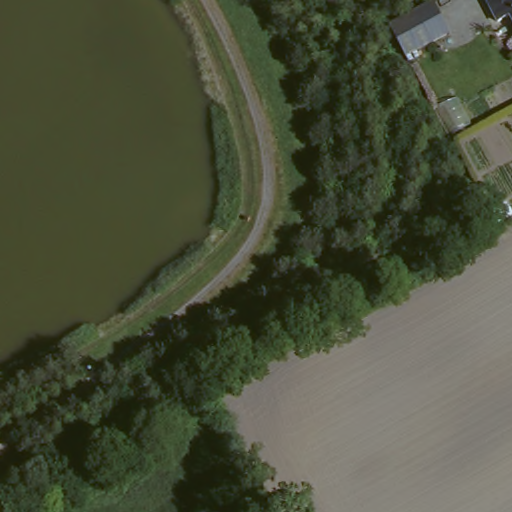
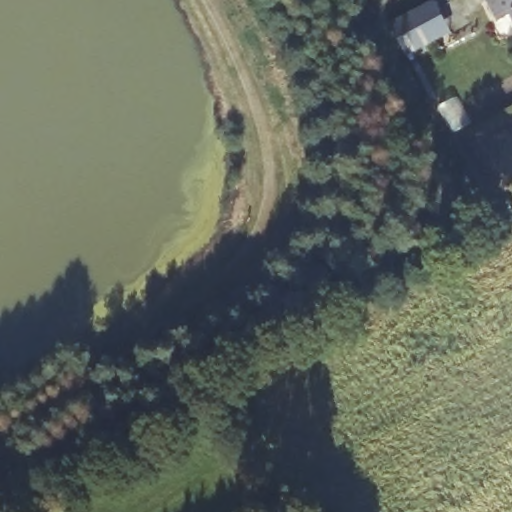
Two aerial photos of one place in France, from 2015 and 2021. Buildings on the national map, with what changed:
unchanged [(512,0),(512,19),(511,16),(495,24),(483,3),(489,0),(512,0)]

